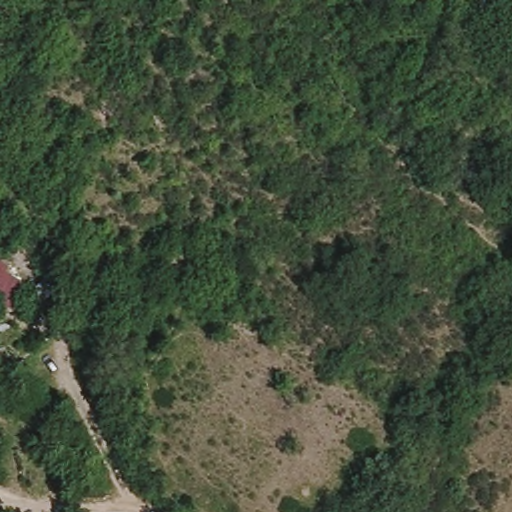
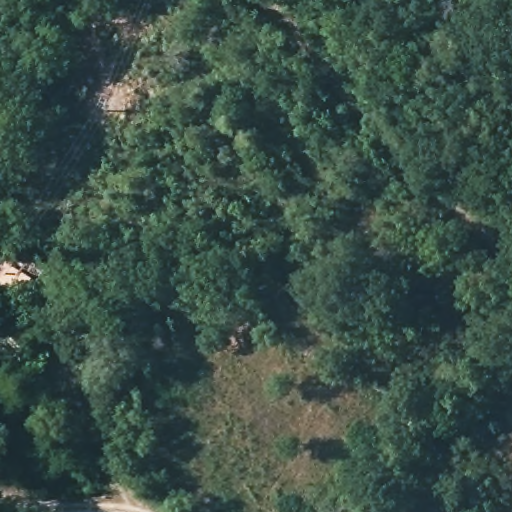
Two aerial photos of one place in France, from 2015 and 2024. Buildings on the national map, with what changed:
unchanged [(5,263),(3,271),(26,284),(14,309),(0,303),(0,261),(5,263)]

